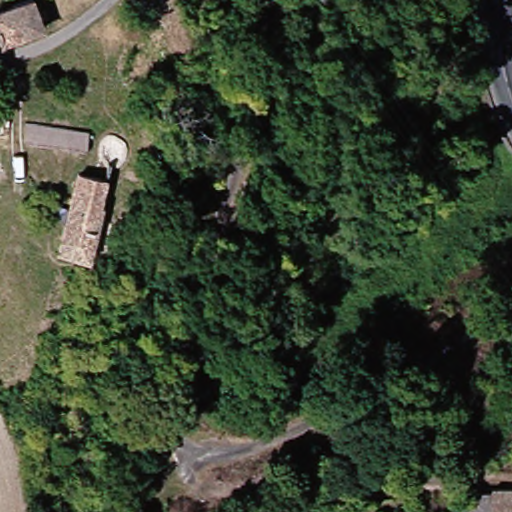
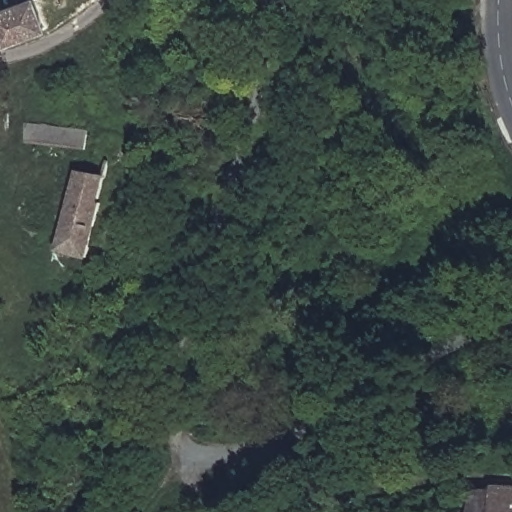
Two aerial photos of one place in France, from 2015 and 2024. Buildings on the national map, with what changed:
unchanged [(0,16),(33,0),(44,0),(57,22),(4,46),(0,37),(0,16)]
unchanged [(37,144),(39,123),(99,130),(100,151),(37,144)]
unchanged [(115,178),(96,260),(65,253),(85,171),(115,178)]
unchanged [(512,487),(512,512),(473,512),(477,486),(512,487)]

